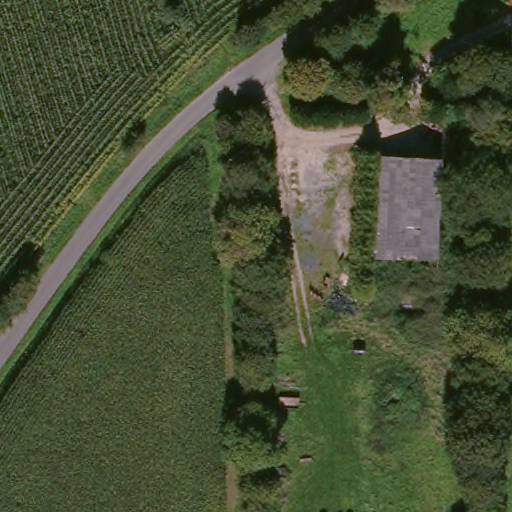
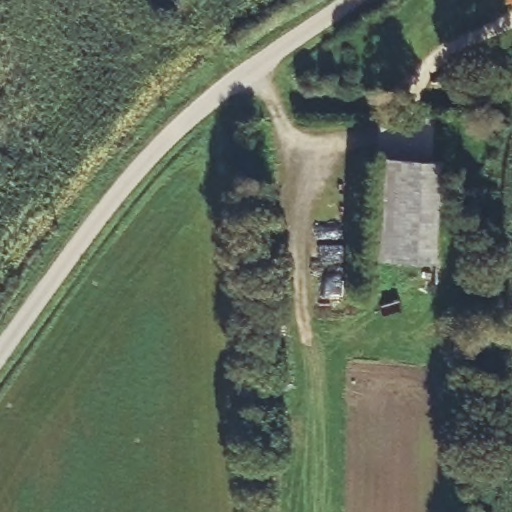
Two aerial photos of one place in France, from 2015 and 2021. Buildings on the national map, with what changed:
unchanged [(511,0),(512,0),(512,2),(511,0)]
unchanged [(441,161),(441,282),(378,282),(383,161),(441,161)]

